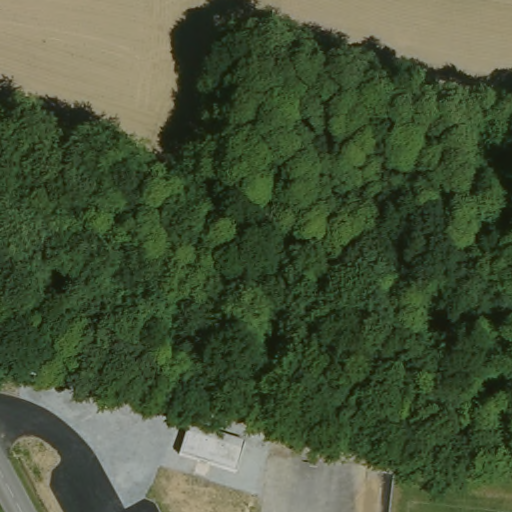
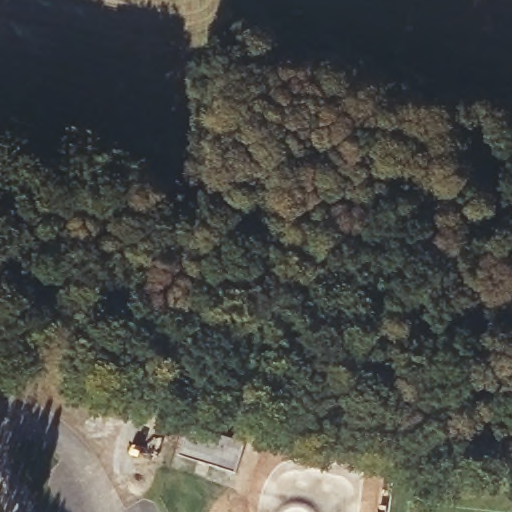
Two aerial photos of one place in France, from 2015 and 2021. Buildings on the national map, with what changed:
unchanged [(229,473),(172,453),(182,426),(237,446),(229,473)]

